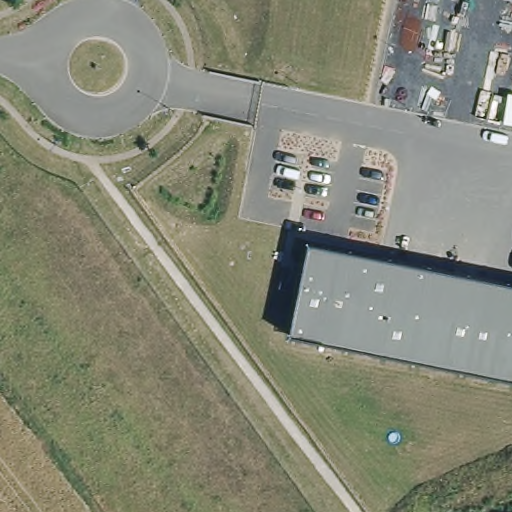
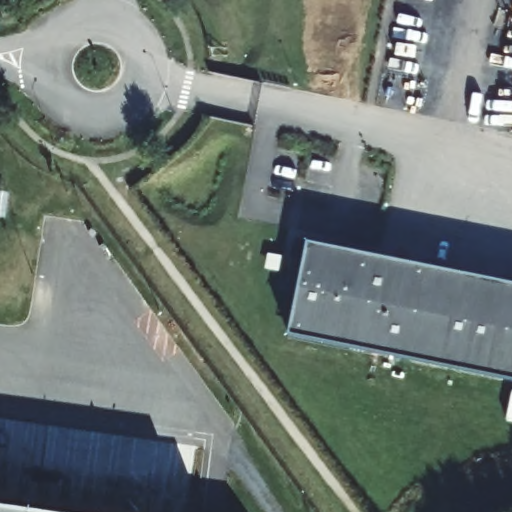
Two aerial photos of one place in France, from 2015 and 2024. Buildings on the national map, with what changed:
unchanged [(305,243),(512,286),(512,379),(287,330),(305,243)]
new [(58,512),(0,512),(0,504),(58,512)]

